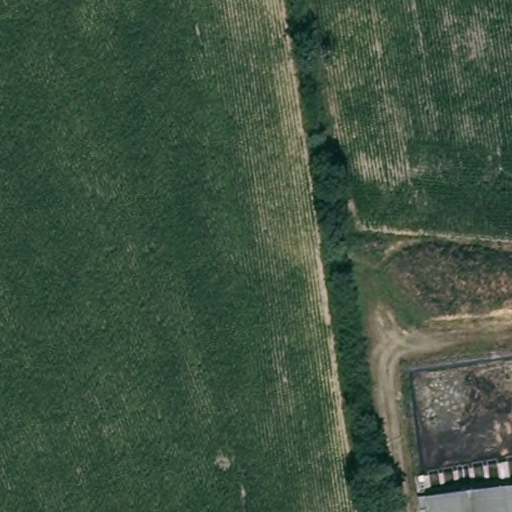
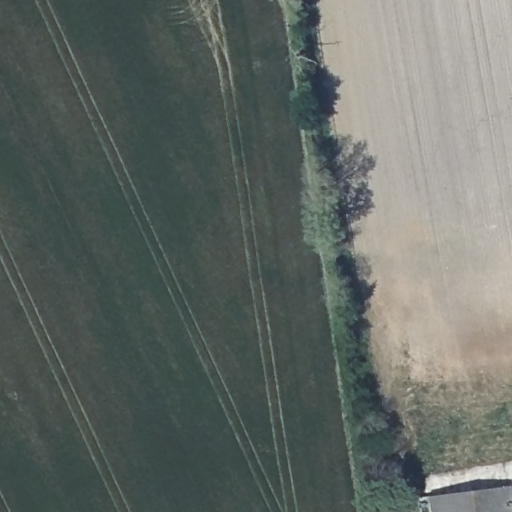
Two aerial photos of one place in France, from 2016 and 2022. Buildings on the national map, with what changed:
unchanged [(512,487),(512,512),(509,512),(506,488),(512,487)]
unchanged [(427,512),(418,512),(418,497),(506,488),(509,512),(427,512)]

